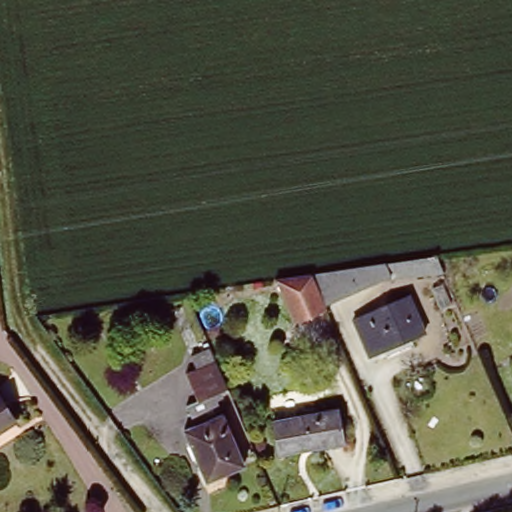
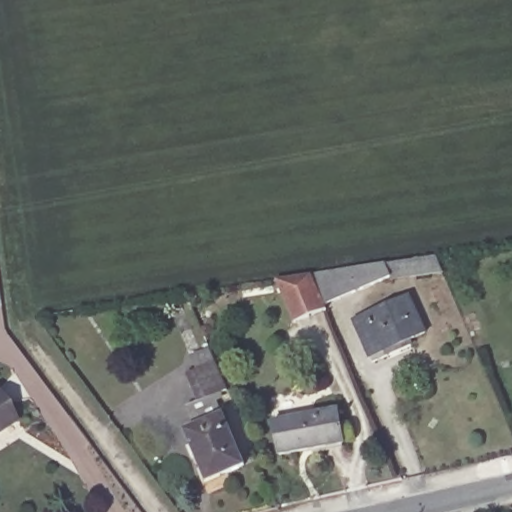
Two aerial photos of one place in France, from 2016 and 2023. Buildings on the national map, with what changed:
unchanged [(331,297),(319,268),(391,257),(398,272),(332,300),(331,297)]
unchanged [(319,268),(331,297),(298,311),(281,273),(319,268)]
unchanged [(421,335),(366,359),(349,323),(404,299),(421,335)]
unchanged [(224,391),(213,396),(243,467),(206,482),(183,432),(196,427),(187,407),(196,403),(178,362),(208,350),(224,391)]
unchanged [(0,436),(0,402),(16,427),(0,436)]
unchanged [(339,451),(277,462),(270,427),(333,414),(339,451)]

